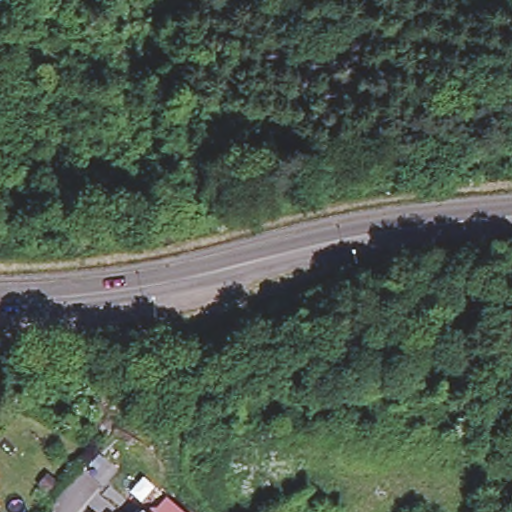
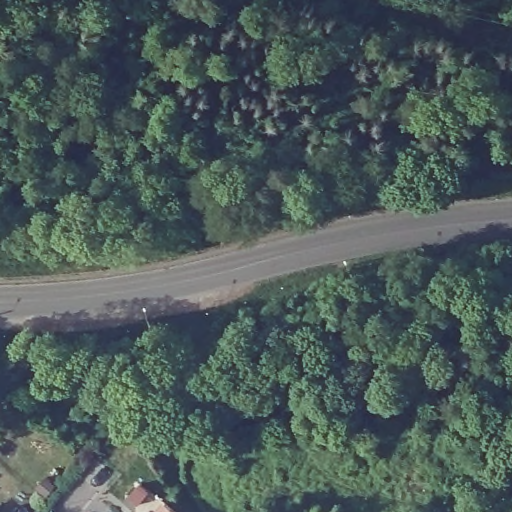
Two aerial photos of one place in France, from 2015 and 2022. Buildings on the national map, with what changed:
unchanged [(0,489),(0,486),(2,487),(0,489)]
unchanged [(145,506),(149,503),(155,502),(165,492),(189,512),(133,512),(141,502),(145,506)]

